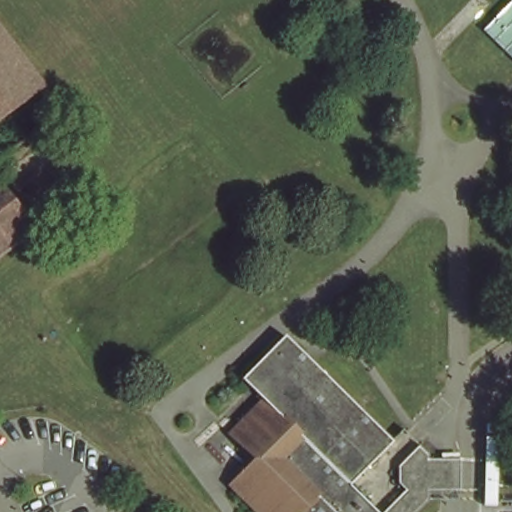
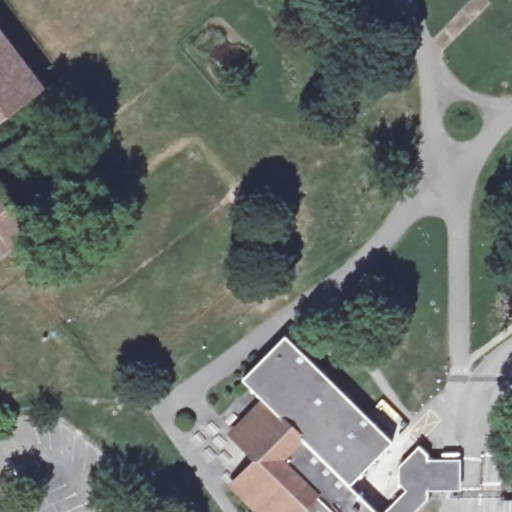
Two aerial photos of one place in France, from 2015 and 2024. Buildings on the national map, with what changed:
demolished [(512,0),(512,59),(482,31),(512,0)]
unchanged [(0,120),(0,40),(37,91),(0,120)]
unchanged [(11,181),(1,191),(32,232),(0,256),(0,165),(11,181)]
unchanged [(394,440),(353,480),(385,511),(384,512),(284,512),(242,473),(262,452),(241,431),(270,400),(247,377),(288,335),(394,440)]
unchanged [(428,451),(434,490),(411,512),(385,512),(385,511),(408,486),(408,457),(420,442),(428,451)]

